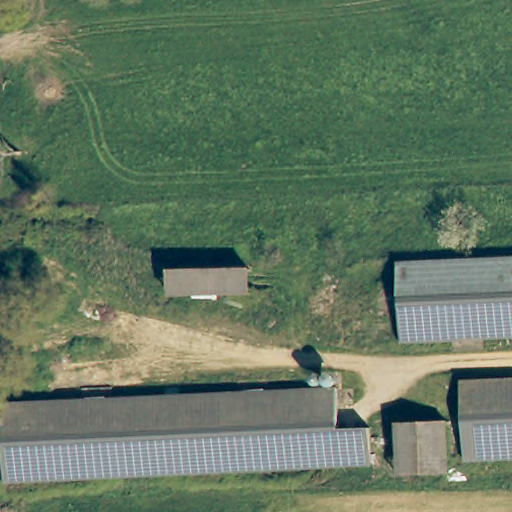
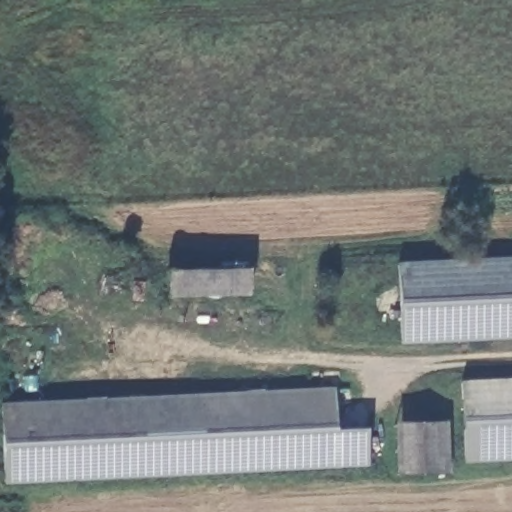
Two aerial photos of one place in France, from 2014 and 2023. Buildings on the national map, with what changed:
unchanged [(405,338),(403,262),(512,257),(512,333),(405,338)]
unchanged [(253,269),(252,294),(170,294),(168,269),(253,269)]
unchanged [(466,458),(463,383),(512,381),(512,456),(466,458)]
unchanged [(9,476),(6,402),(341,390),(342,426),(370,425),(372,463),(9,476)]
unchanged [(446,421),(449,470),(373,475),(372,463),(370,425),(446,421)]

